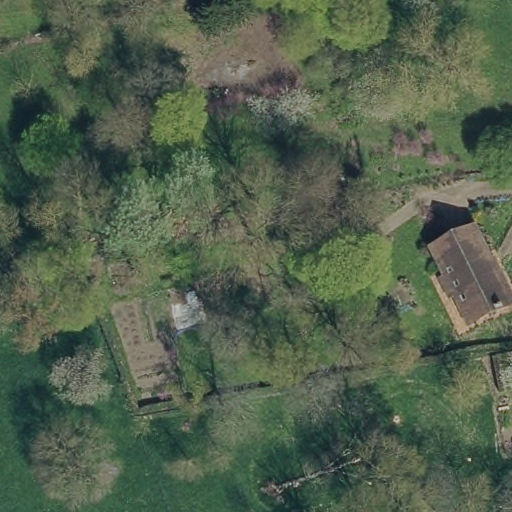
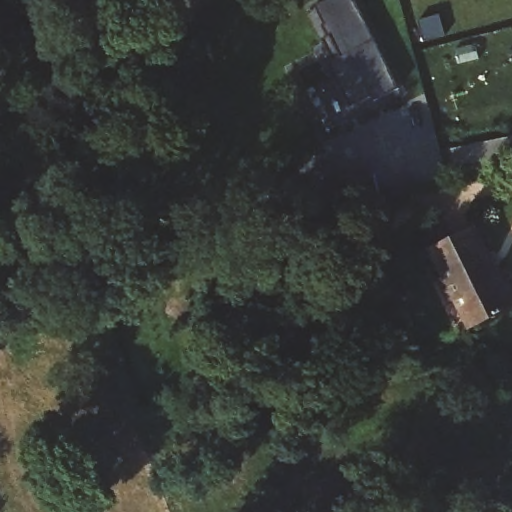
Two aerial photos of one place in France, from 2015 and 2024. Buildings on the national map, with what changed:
new [(400,88),(374,101),(372,96),(351,107),(328,62),(340,56),(330,35),(328,37),(322,25),(325,24),(315,5),(325,0),(355,0),(400,88)]
new [(340,56),(332,59),(322,39),(330,35),(340,56)]
unchanged [(503,268),(507,266),(512,275),(512,309),(465,331),(450,303),(443,307),(434,288),(440,284),(425,254),(483,227),(503,268)]

